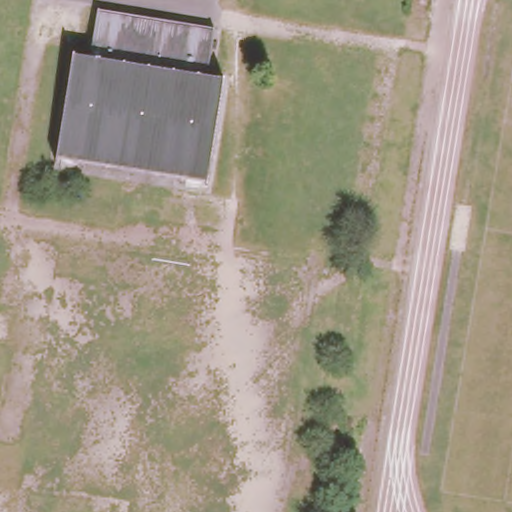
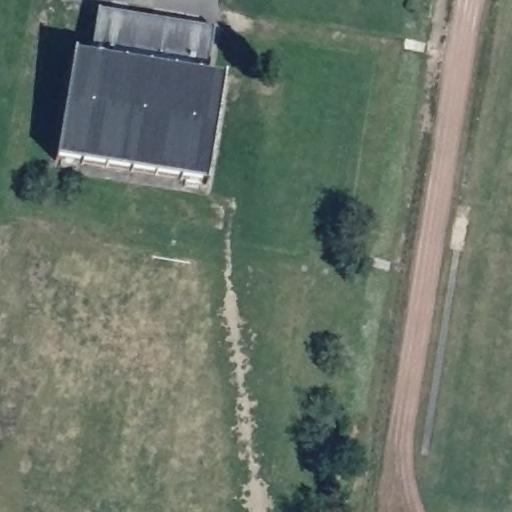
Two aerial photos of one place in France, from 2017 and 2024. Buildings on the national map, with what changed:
unchanged [(204,74),(222,77),(205,182),(55,156),(72,52),(90,55),(98,7),(211,26),(204,74)]

